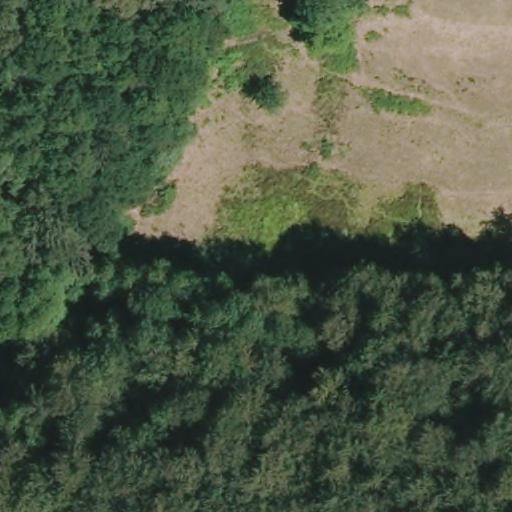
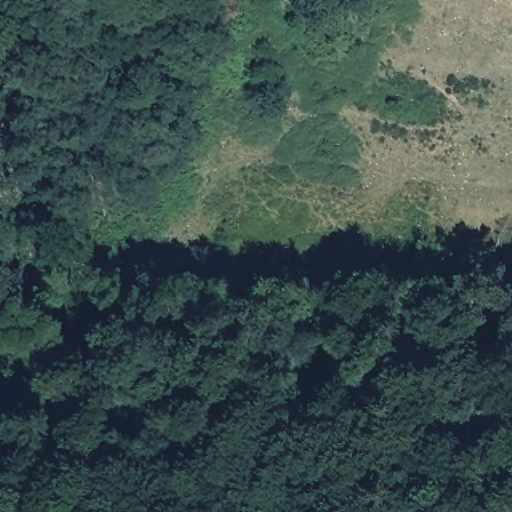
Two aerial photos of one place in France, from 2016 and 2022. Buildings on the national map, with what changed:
[]

